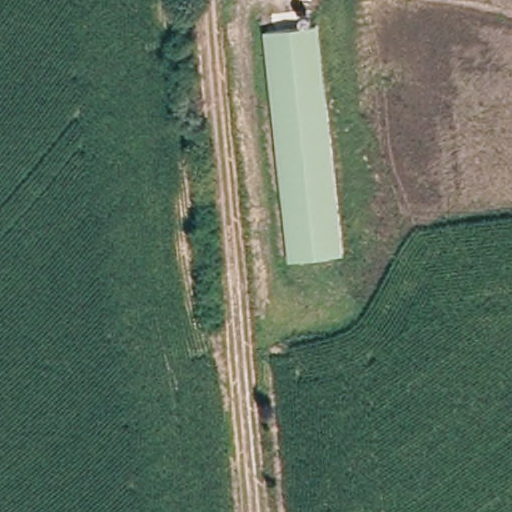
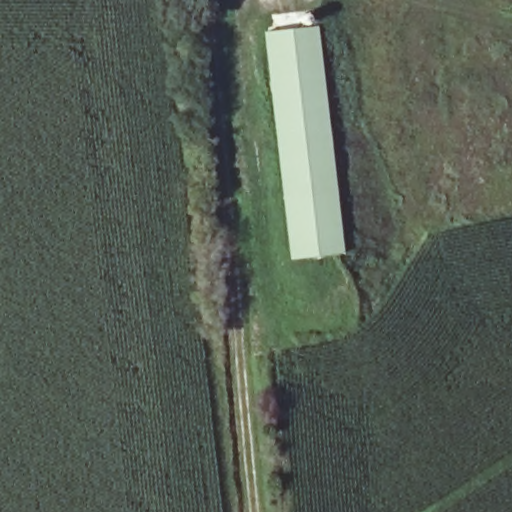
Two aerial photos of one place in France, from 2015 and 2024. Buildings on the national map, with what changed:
unchanged [(319,26),(341,255),(293,260),(272,30),(319,26)]

